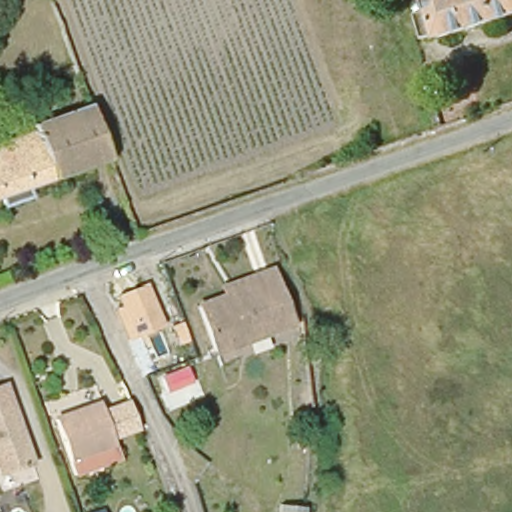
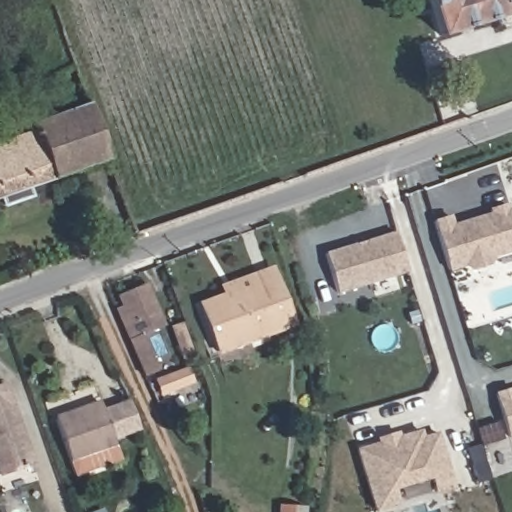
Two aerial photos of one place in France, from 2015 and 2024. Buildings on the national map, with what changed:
unchanged [(438,32),(424,36),(411,0),(512,0),(512,12),(439,35),(438,32)]
unchanged [(42,129),(40,123),(90,106),(110,158),(33,185),(33,194),(11,202),(4,194),(0,195),(0,144),(42,129)]
new [(512,253),(494,258),(490,266),(471,270),(464,266),(449,271),(434,220),(451,215),(453,223),(491,212),(490,207),(509,202),(512,212),(512,253)]
new [(327,253),(396,232),(408,270),(338,291),(327,253)]
unchanged [(292,322),(215,349),(200,303),(227,294),(224,284),(251,276),(275,269),(292,322)]
unchanged [(166,326),(128,341),(114,307),(119,304),(115,296),(148,284),(166,326)]
unchanged [(0,475),(0,387),(5,385),(32,465),(0,475)]
new [(512,435),(511,435),(498,391),(512,387),(512,435)]
unchanged [(98,397),(99,400),(100,403),(118,397),(125,394),(133,417),(127,419),(108,427),(115,450),(69,465),(54,415),(52,412),(98,397)]
new [(383,441),(381,436),(400,431),(401,435),(422,429),(424,436),(439,432),(455,486),(437,491),(433,475),(393,487),(398,503),(376,509),(358,448),(383,441)]
unchanged [(105,512),(85,512),(102,505),(105,512)]
unchanged [(309,512),(279,512),(279,505),(309,506),(309,512)]

